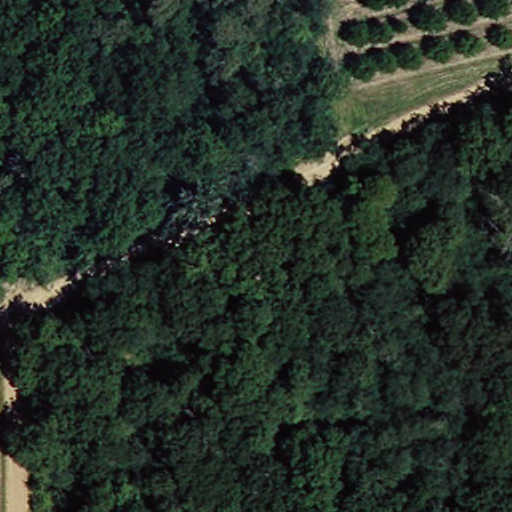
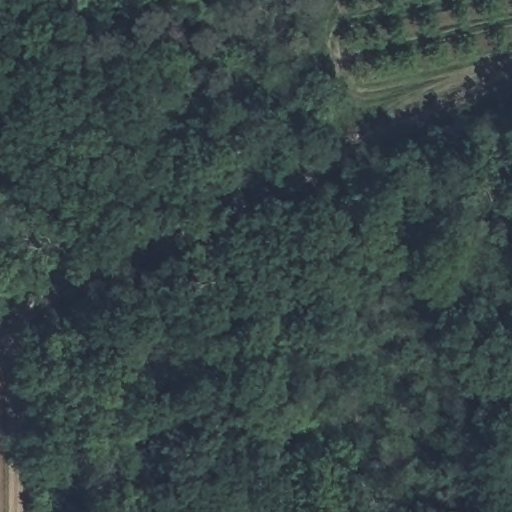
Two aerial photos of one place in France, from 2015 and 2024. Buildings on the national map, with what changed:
unchanged [(70,274),(38,288),(35,265),(64,253),(70,274)]

